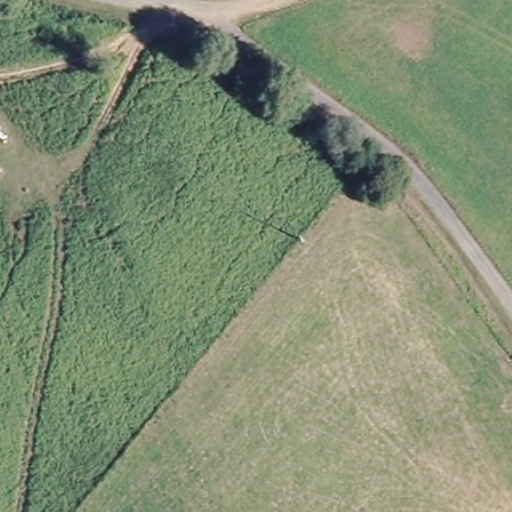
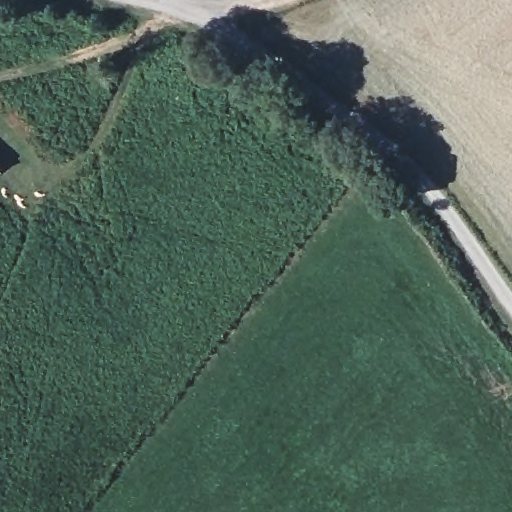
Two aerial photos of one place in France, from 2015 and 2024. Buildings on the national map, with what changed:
unchanged [(1,164),(0,166),(0,163),(1,164)]

